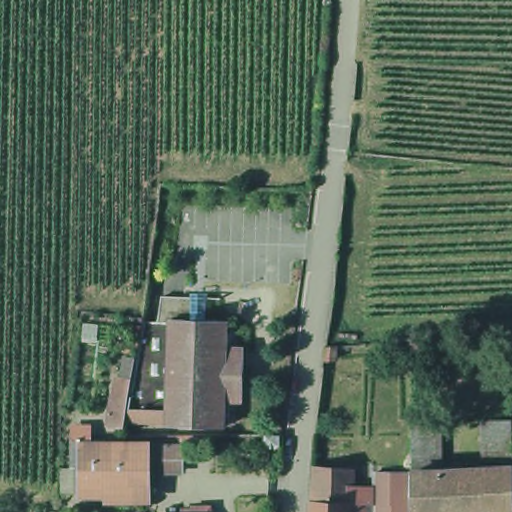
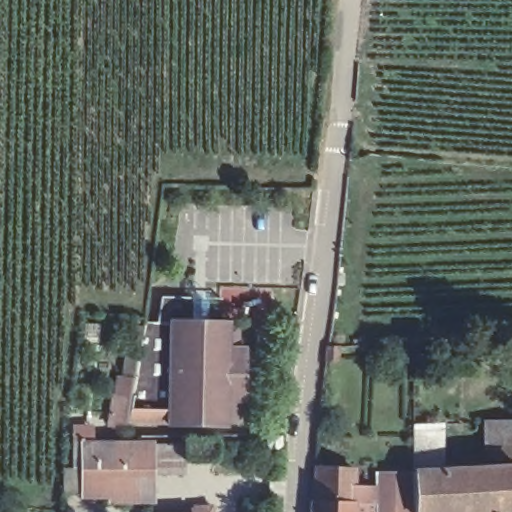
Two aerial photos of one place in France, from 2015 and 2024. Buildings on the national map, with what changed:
unchanged [(185,288),(187,288),(185,283),(202,284),(202,293),(202,312),(166,310),(166,314),(154,313),(155,286),(185,288)]
unchanged [(166,314),(166,310),(202,312),(222,312),(222,317),(232,317),(232,338),(240,340),(240,392),(232,392),(232,413),(222,413),(222,418),(163,415),(163,413),(166,314)]
unchanged [(107,416),(112,384),(125,387),(127,374),(137,313),(154,313),(166,314),(163,413),(122,412),(121,418),(107,416)]
unchanged [(488,425),(512,423),(512,471),(488,473),(488,425)]
unchanged [(415,431),(440,430),(440,432),(440,476),(415,477),(415,431)]
unchanged [(154,483),(154,486),(149,486),(149,497),(105,497),(105,488),(85,488),(85,464),(77,464),(76,435),(113,435),(113,442),(149,442),(182,442),(182,468),(149,468),(149,483),(154,483)]
unchanged [(440,476),(488,473),(512,471),(512,512),(417,512),(415,477),(440,476)]
unchanged [(355,473),(356,507),(315,506),(317,472),(355,473)]
unchanged [(375,496),(395,497),(395,477),(415,477),(416,512),(375,512),(375,496)]
unchanged [(356,507),(356,512),(315,512),(315,506),(356,507)]

